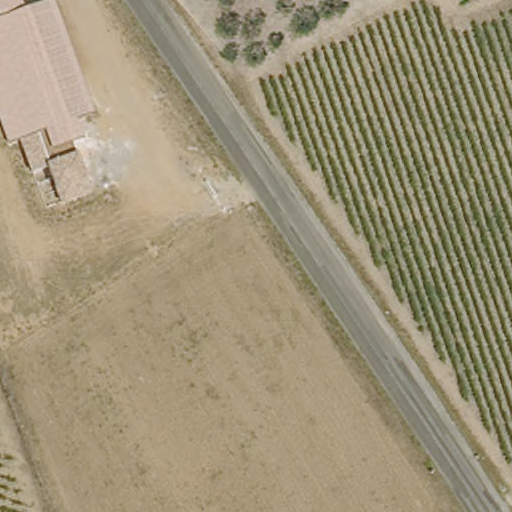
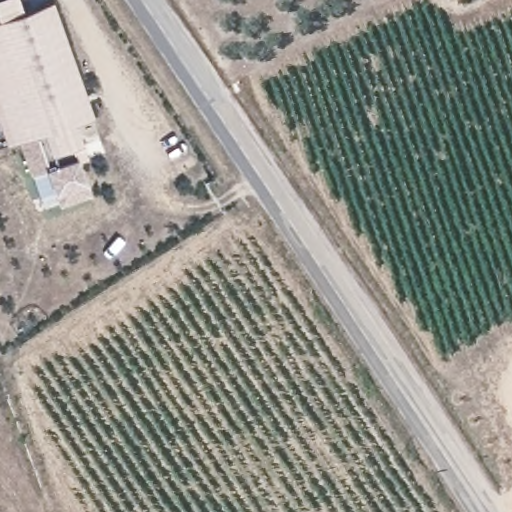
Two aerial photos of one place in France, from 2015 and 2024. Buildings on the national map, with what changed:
unchanged [(53,0),(55,0),(93,115),(76,120),(84,141),(75,144),(93,193),(60,205),(47,170),(30,174),(18,139),(8,144),(0,122),(0,0),(22,0),(25,9),(53,0)]

